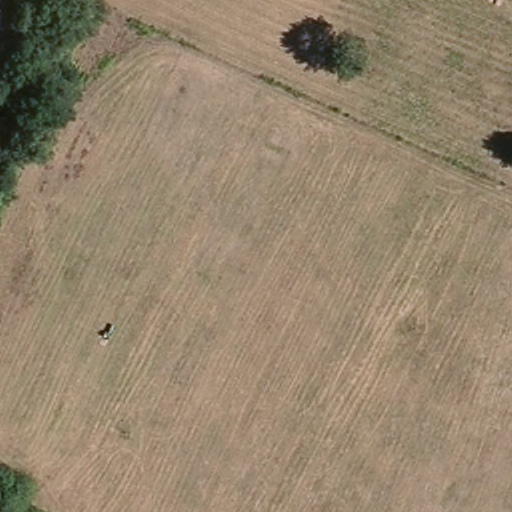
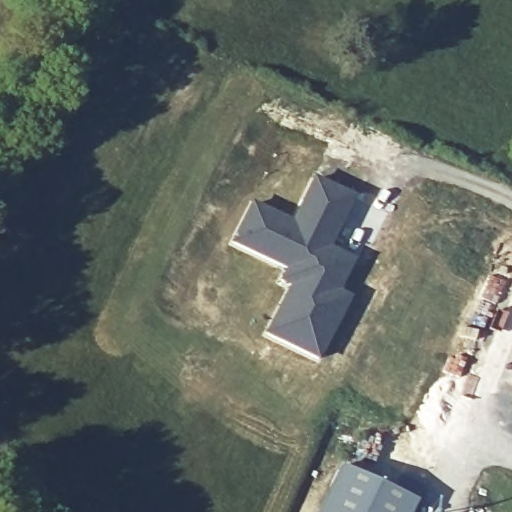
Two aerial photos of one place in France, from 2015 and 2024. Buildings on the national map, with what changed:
new [(332,250),(356,262),(339,292),(350,299),(316,363),(264,335),(289,288),(279,283),(284,273),(232,244),(252,201),(291,220),(315,177),(356,197),(332,250)]
new [(344,465),(420,503),(416,512),(321,512),(344,465)]

